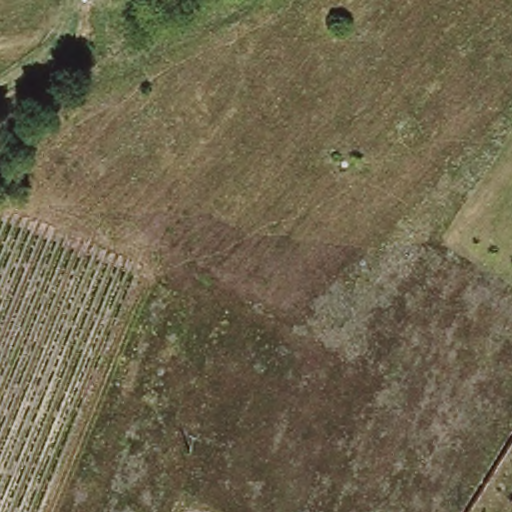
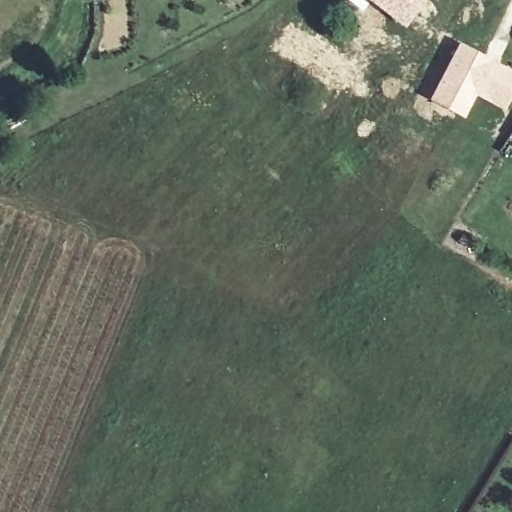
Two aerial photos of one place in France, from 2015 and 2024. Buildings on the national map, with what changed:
new [(369,1),(362,11),(348,0),(423,0),(404,27),(369,1)]
new [(457,41),(512,70),(512,93),(504,110),(477,95),(464,118),(427,98),(457,41)]
new [(512,128),(512,139),(507,136),(512,128)]

